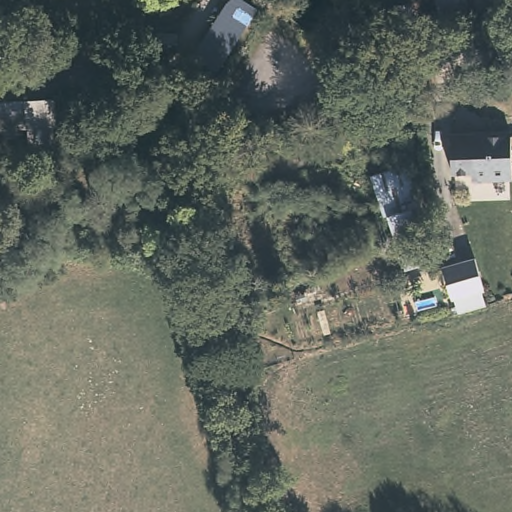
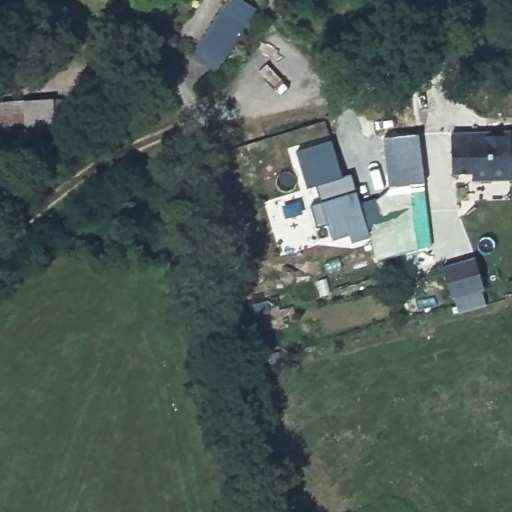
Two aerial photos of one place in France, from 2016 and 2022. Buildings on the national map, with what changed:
unchanged [(440,24),(434,0),(472,0),(476,16),(440,24)]
unchanged [(224,8),(245,19),(223,61),(203,50),(224,8)]
unchanged [(59,126),(32,126),(0,129),(0,101),(27,98),(59,97),(59,126)]
unchanged [(512,148),(512,182),(509,183),(509,204),(487,207),(487,182),(475,181),(475,175),(452,175),(450,133),(512,131),(512,148)]
new [(417,135),(423,184),(387,186),(383,138),(417,135)]
new [(352,174),(358,191),(360,202),(375,198),(383,225),(368,229),(371,238),(352,244),(349,235),(332,240),(328,225),(316,229),(310,205),(321,202),(317,185),(307,188),(295,151),(331,140),(343,176),(352,174)]
demolished [(414,165),(423,207),(417,209),(422,231),(398,237),(393,213),(387,214),(378,173),(414,165)]
unchanged [(459,312),(455,297),(452,298),(443,267),(475,257),(484,288),(482,289),(488,304),(459,312)]

